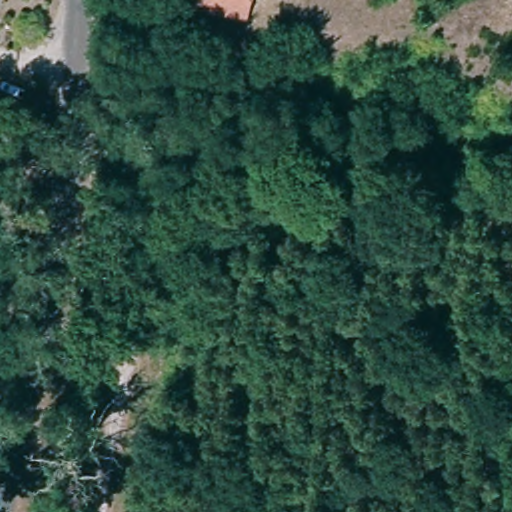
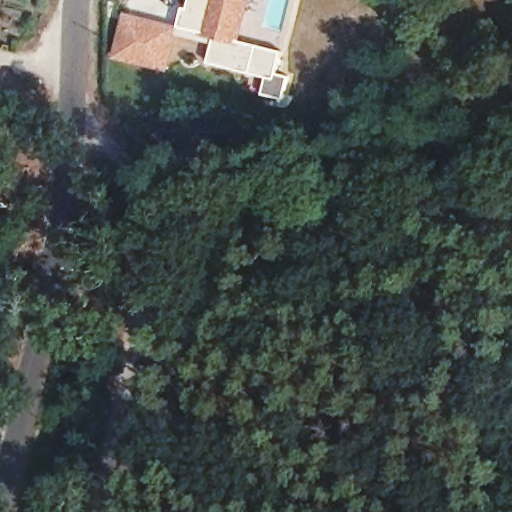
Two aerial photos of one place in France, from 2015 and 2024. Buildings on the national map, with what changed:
unchanged [(187,4),(188,0),(247,0),(242,18),(187,4)]
new [(125,10),(178,25),(184,6),(186,7),(187,4),(242,18),(243,20),(238,40),(282,53),(277,74),(289,76),(284,100),(261,95),(265,77),(208,62),(212,45),(178,35),(168,72),(113,59),(125,10)]

